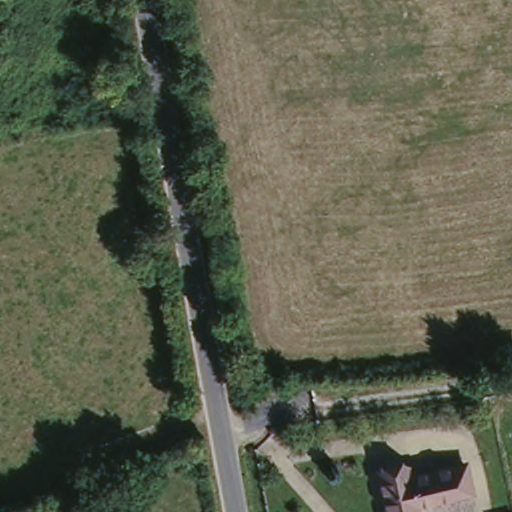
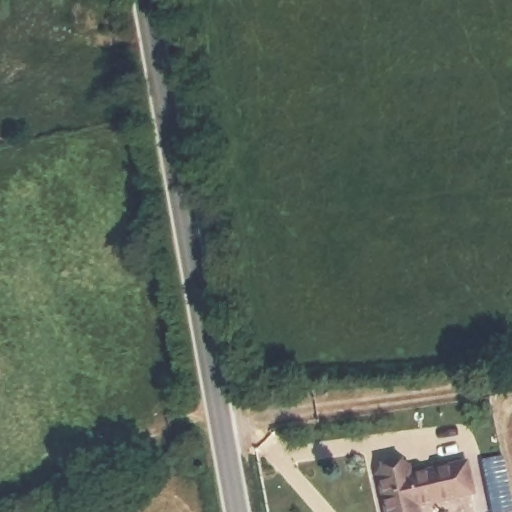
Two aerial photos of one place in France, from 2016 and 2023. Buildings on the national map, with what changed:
unchanged [(383,480),(412,474),(415,485),(467,472),(473,501),(423,512),(389,512),(383,480)]
unchanged [(512,511),(512,512),(507,512),(512,511)]

